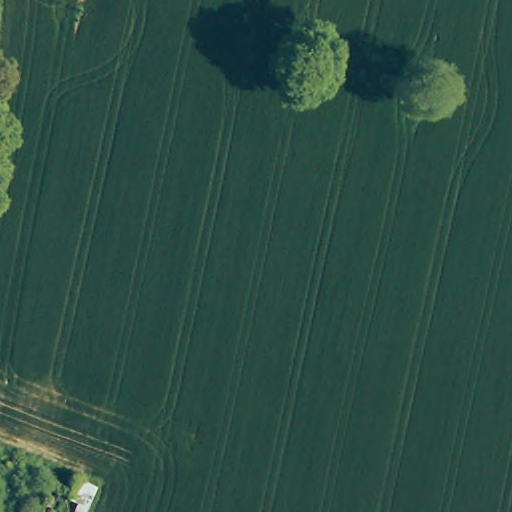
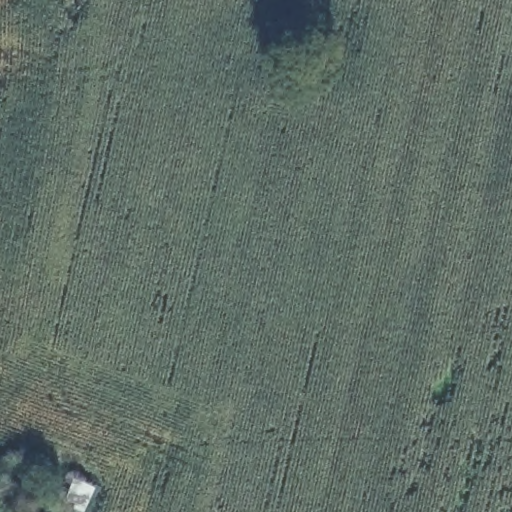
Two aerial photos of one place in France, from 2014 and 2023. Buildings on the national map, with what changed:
unchanged [(80,477),(97,487),(84,512),(21,512),(0,502),(0,465),(2,460),(74,491),(80,477)]

